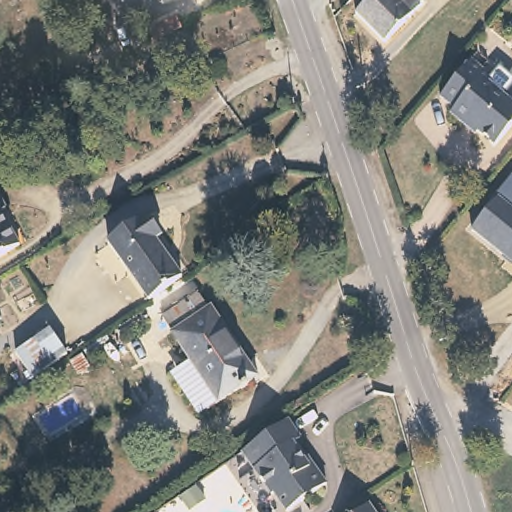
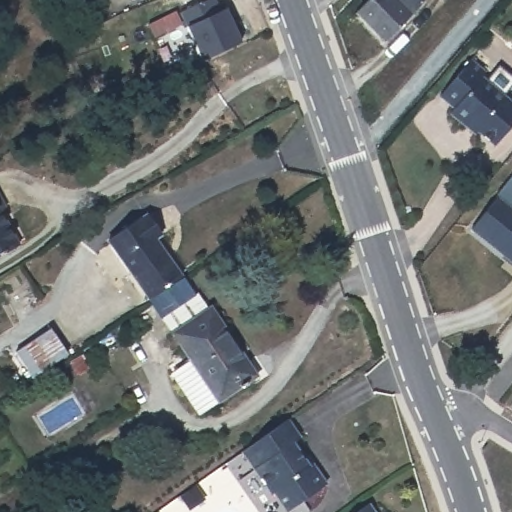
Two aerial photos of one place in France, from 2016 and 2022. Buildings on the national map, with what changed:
new [(216,0),(221,10),(226,7),(241,41),(202,59),(187,27),(181,12),(206,0),(216,0)]
unchanged [(416,0),(420,4),(382,44),(352,15),(366,0),(416,0)]
unchanged [(463,122),(449,110),(448,109),(452,105),(437,91),(469,55),(483,68),(481,72),(485,76),(498,61),(512,73),(512,79),(502,91),(511,99),(512,99),(512,119),(494,140),(484,131),(477,125),(472,131),(463,122)]
unchanged [(512,178),(512,263),(472,229),(498,197),(497,196),(512,178)]
unchanged [(147,207),(162,227),(154,233),(182,271),(146,296),(102,238),(147,207)]
unchanged [(0,247),(0,233),(6,244),(0,247)]
unchanged [(172,327),(173,326),(163,311),(198,288),(208,303),(210,302),(258,372),(220,398),(192,357),(172,327)]
unchanged [(67,353),(31,377),(14,352),(48,329),(67,353)]
unchanged [(220,398),(202,409),(175,367),(192,357),(220,398)]
unchanged [(300,433),(292,438),(304,455),(306,453),(313,463),(325,480),(285,507),(272,490),(271,491),(239,447),(286,414),(300,433)]
unchanged [(374,512),(356,512),(368,504),(374,512)]

